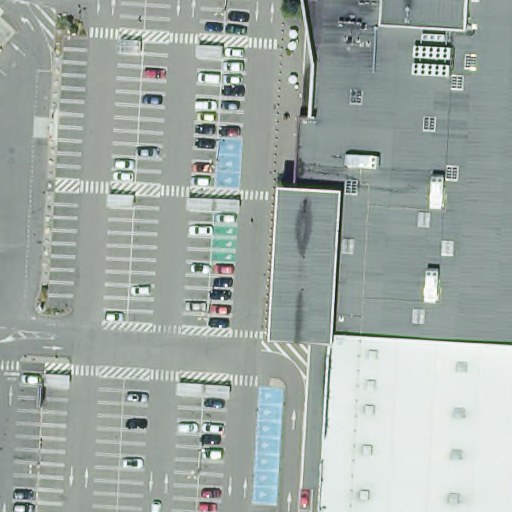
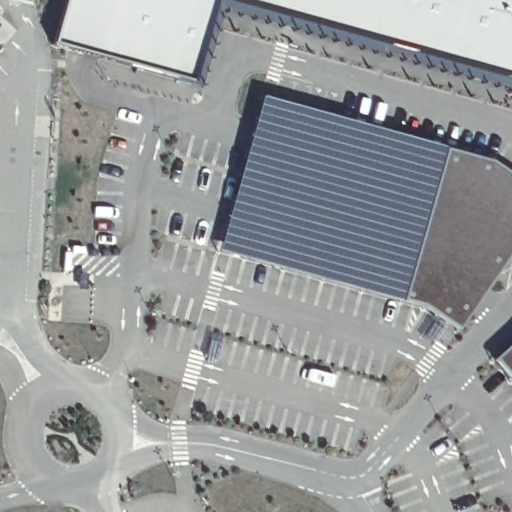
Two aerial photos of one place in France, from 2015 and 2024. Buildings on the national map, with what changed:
new [(194,81),(57,42),(68,0),(219,0),(194,81)]
new [(512,74),(248,0),(512,0),(512,74)]
demolished [(512,512),(322,512),(323,498),(323,489),(331,353),(331,337),(331,336),(320,336),(300,335),(303,283),(278,282),(281,220),(306,221),(307,196),(296,195),(298,179),(301,117),(313,117),(316,65),(308,15),(305,0),(512,0),(512,512)]
new [(426,308),(221,251),(264,95),(494,162),(512,175),(512,254),(461,331),(426,308)]
new [(512,377),(497,360),(512,346),(512,377)]

